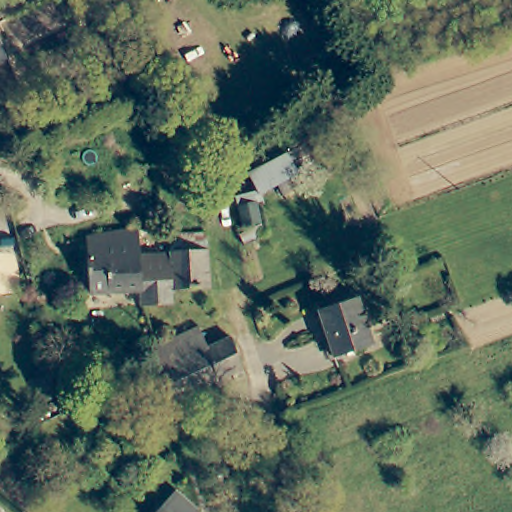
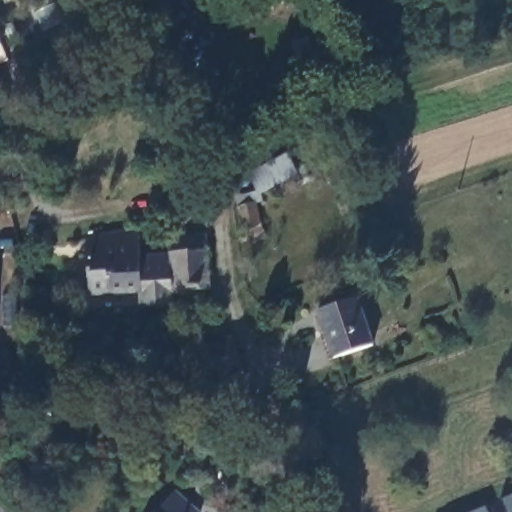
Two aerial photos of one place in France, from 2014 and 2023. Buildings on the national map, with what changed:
unchanged [(241,249),(233,198),(255,191),(249,174),(287,157),(297,181),(260,202),(263,239),(241,249)]
unchanged [(140,294),(88,296),(86,239),(137,233),(138,261),(169,258),(167,237),(204,237),(205,253),(205,265),(205,266),(206,292),(205,293),(171,293),(171,309),(162,309),(144,310),(141,310),(140,294)]
unchanged [(375,343),(337,357),(319,310),(357,297),(375,343)]
unchanged [(159,407),(147,377),(139,354),(150,349),(189,334),(197,354),(219,344),(220,344),(232,375),(227,377),(159,407)]
unchanged [(55,395),(40,398),(36,380),(51,377),(55,395)]
unchanged [(177,488),(201,512),(154,512),(177,488)]
new [(496,501),(512,493),(512,512),(501,512),(496,501)]
new [(482,506),(485,512),(469,512),(482,506)]

